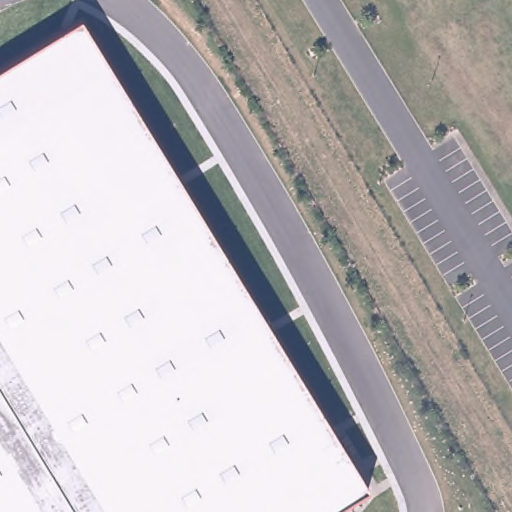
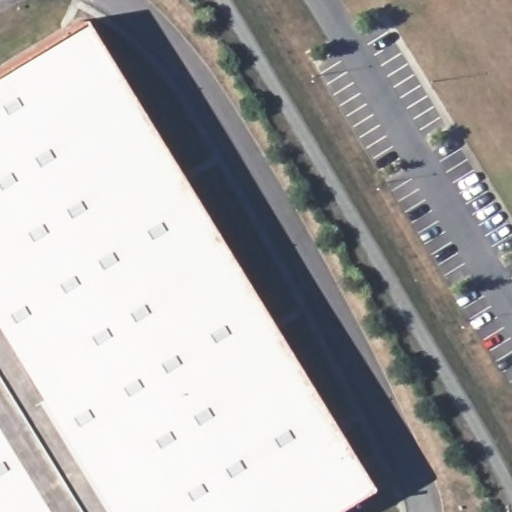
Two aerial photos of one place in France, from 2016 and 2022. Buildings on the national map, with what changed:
unchanged [(332,512),(0,512),(0,73),(80,24),(368,491),(332,512)]

